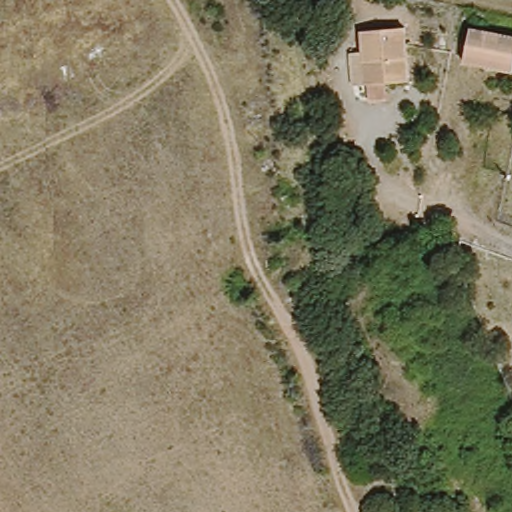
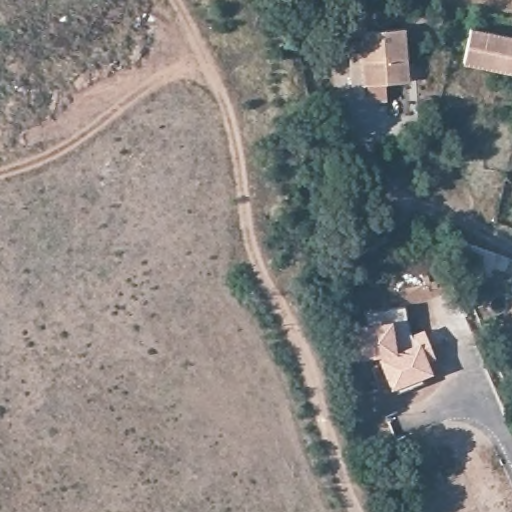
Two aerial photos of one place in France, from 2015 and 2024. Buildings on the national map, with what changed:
unchanged [(512,69),(467,60),(474,26),(512,33),(512,69)]
unchanged [(353,92),(348,54),(360,52),(359,39),(401,32),(408,85),(353,92)]
new [(364,311),(405,305),(407,320),(410,332),(424,327),(435,357),(429,360),(435,373),(390,390),(378,356),(360,359),(353,325),(365,322),(364,311)]

